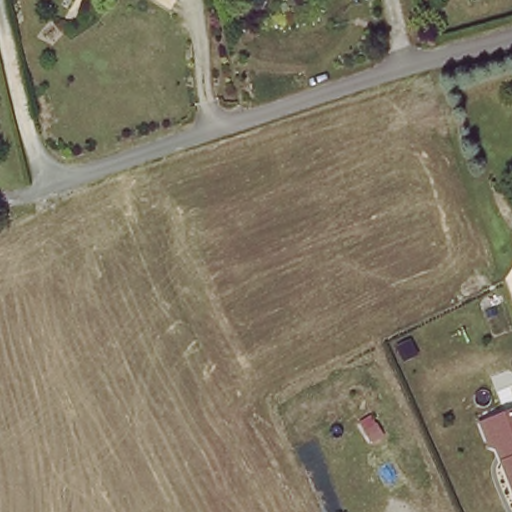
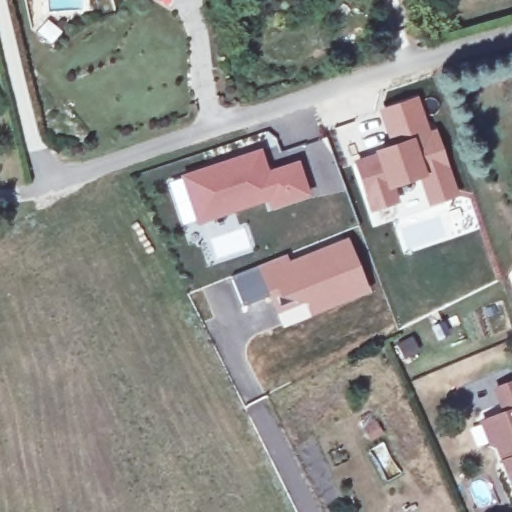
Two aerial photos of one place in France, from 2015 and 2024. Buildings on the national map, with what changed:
new [(390,144),(377,109),(418,94),(430,128),(435,126),(457,194),(427,205),(417,177),(395,187),(401,203),(370,213),(352,160),(390,144)]
new [(270,205),(266,192),(227,206),(227,212),(197,220),(183,177),(257,152),(266,174),(295,164),(306,193),(270,205)]
new [(230,277),(256,266),(287,253),(290,259),(348,236),(370,291),(282,328),(276,315),(268,296),(242,306),(230,277)]
unchanged [(491,446),(482,448),(474,422),(512,411),(512,495),(491,446)]

